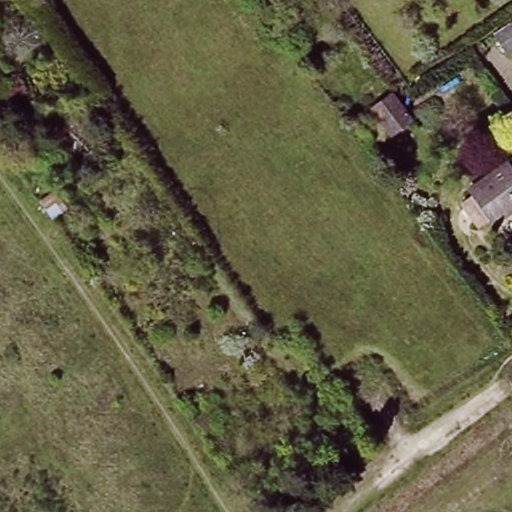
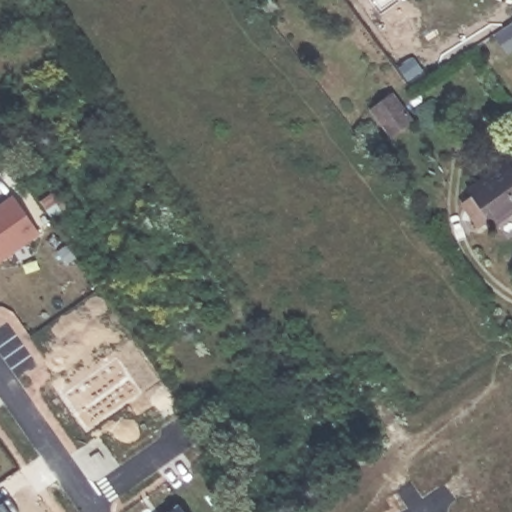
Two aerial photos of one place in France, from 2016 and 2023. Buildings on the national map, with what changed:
new [(512,55),(507,58),(493,36),(512,25),(512,55)]
unchanged [(391,140),(385,132),(370,111),(392,95),(407,116),(413,123),(391,140)]
unchanged [(475,179),(512,152),(512,204),(500,212),(490,220),(465,186),(475,179)]
new [(0,263),(0,203),(12,194),(40,233),(0,263)]
new [(184,512),(167,512),(177,504),(184,512)]

